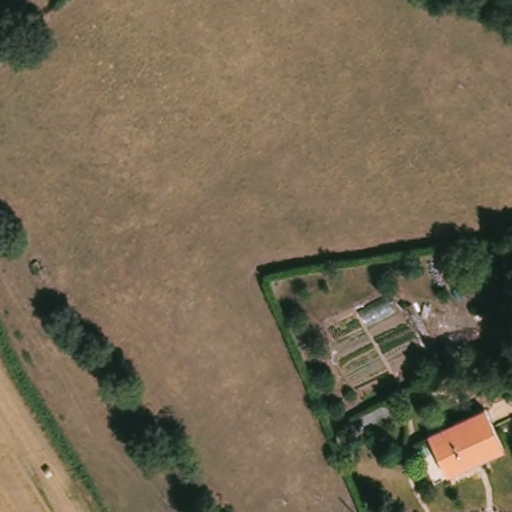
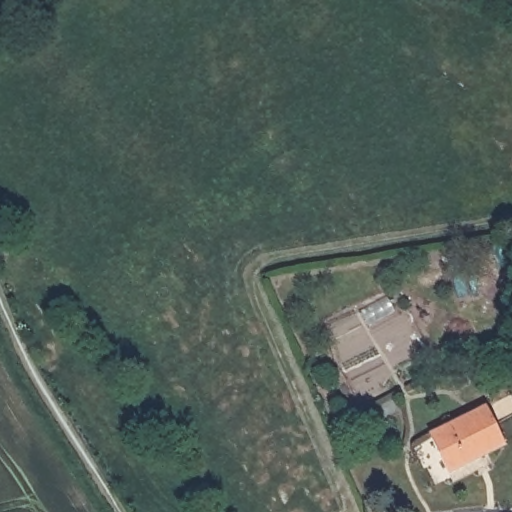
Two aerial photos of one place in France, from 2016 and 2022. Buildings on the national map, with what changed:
unchanged [(493,402),(512,439),(512,440),(455,469),(435,431),(493,402)]

